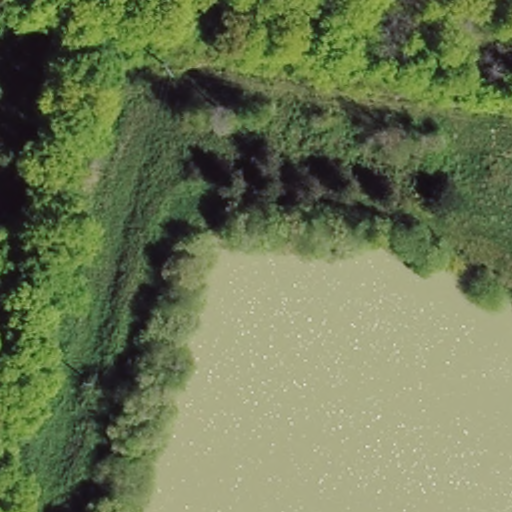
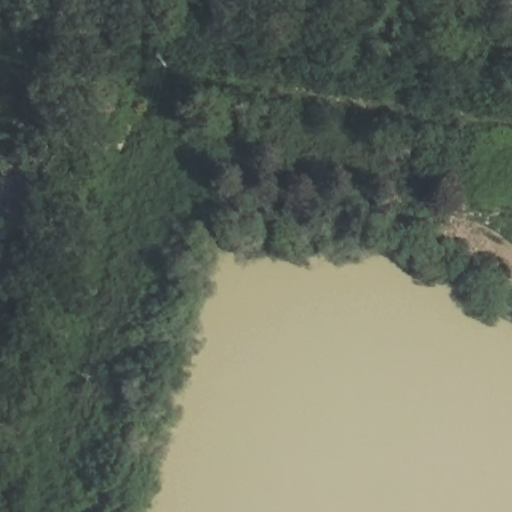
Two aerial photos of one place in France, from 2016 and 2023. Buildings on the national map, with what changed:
[]

